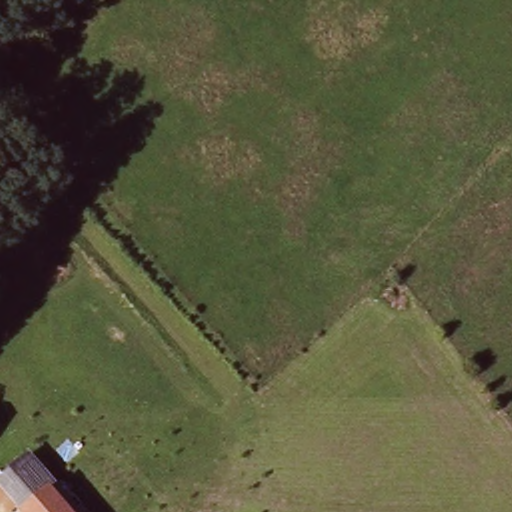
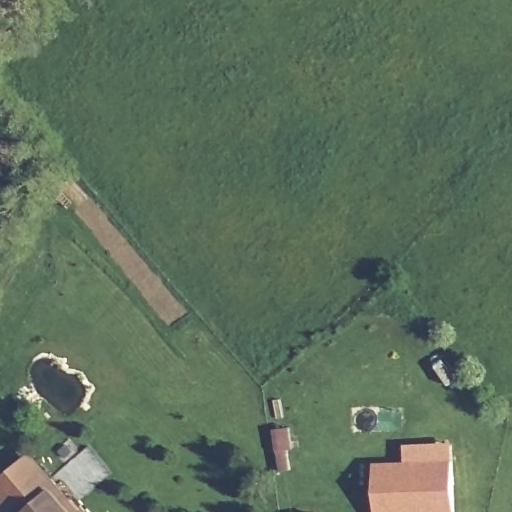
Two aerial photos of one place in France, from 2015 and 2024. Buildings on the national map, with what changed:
new [(288,425),(292,448),(288,449),(290,469),(278,471),(272,428),(288,425)]
new [(403,458),(402,442),(452,440),(454,512),(375,512),(372,461),(403,458)]
unchanged [(0,488),(0,480),(25,457),(52,489),(70,512),(19,512),(0,488)]
new [(312,510),(312,512),(303,512),(312,510)]

